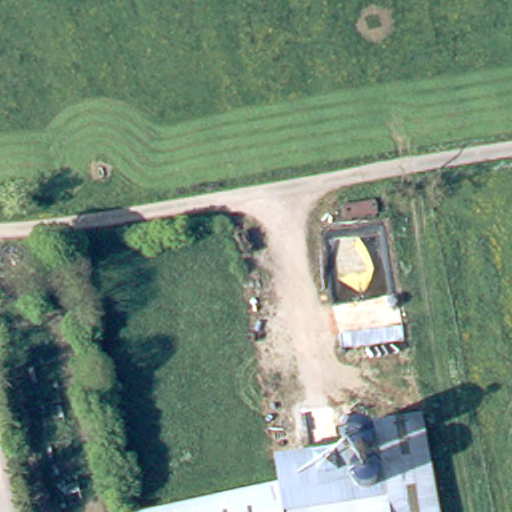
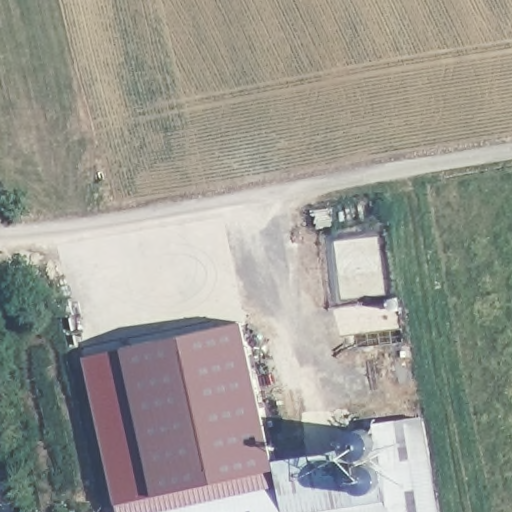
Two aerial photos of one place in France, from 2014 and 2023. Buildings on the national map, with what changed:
new [(244,321),(276,465),(284,464),(287,488),(252,496),(181,512),(124,512),(86,357),(244,321)]
unchanged [(287,488),(284,464),(356,454),(356,452),(355,446),(357,440),(358,437),(361,433),(366,431),(370,430),(375,431),(380,433),(384,426),(432,419),(434,432),(445,512),(181,512),(252,496),(287,488)]

